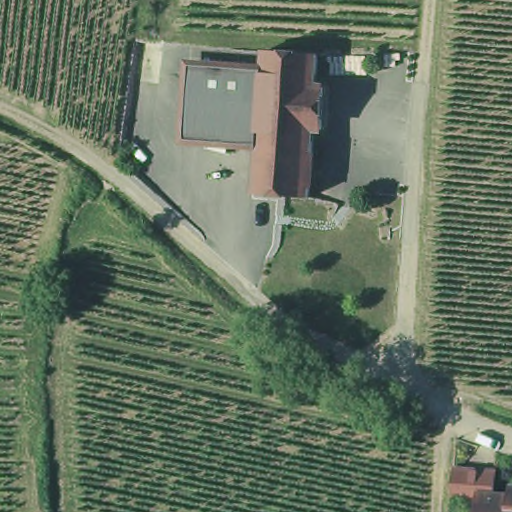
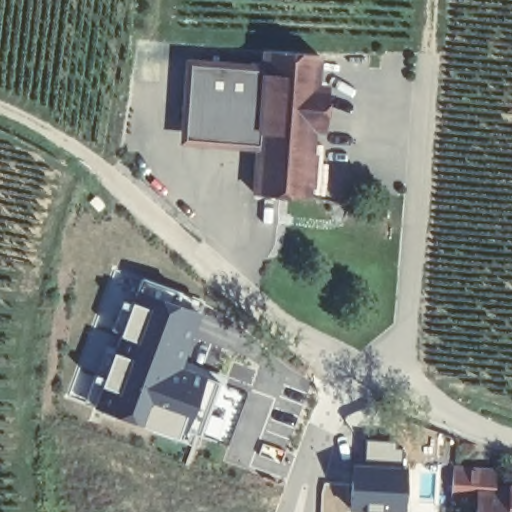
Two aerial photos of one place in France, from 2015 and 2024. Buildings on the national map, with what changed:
unchanged [(326,90),(323,129),(313,128),(308,197),(304,197),(255,193),(259,138),(185,133),(190,65),(264,70),(265,52),(318,55),(317,63),(315,89),(326,90)]
new [(206,302),(200,318),(167,307),(161,325),(188,336),(180,366),(221,376),(211,414),(170,397),(155,439),(65,403),(111,269),(206,302)]
new [(364,461),(365,438),(402,441),(401,464),(406,464),(405,512),(382,512),(348,510),(351,461),(364,461)]
unchanged [(459,472),(500,475),(499,498),(482,497),(481,503),(457,502),(459,472)]
unchanged [(481,503),(482,497),(499,498),(512,499),(512,512),(481,512),(481,503)]

